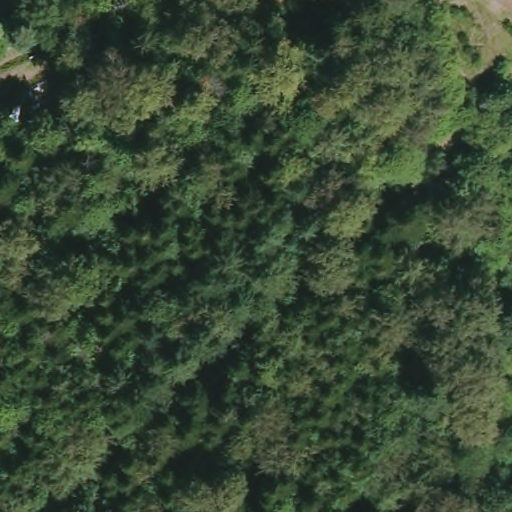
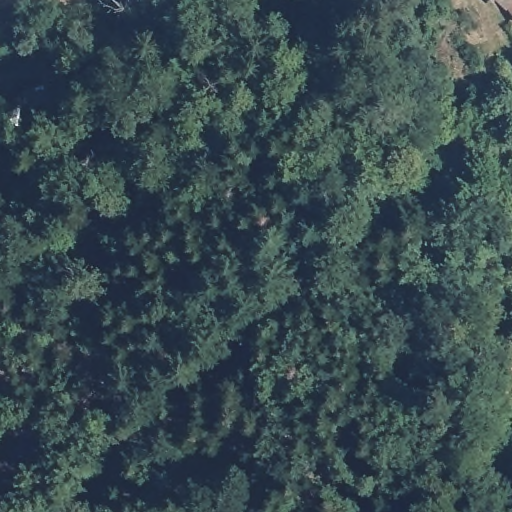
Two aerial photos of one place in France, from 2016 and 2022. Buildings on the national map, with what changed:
unchanged [(508,0),(512,0),(512,3),(508,0)]

